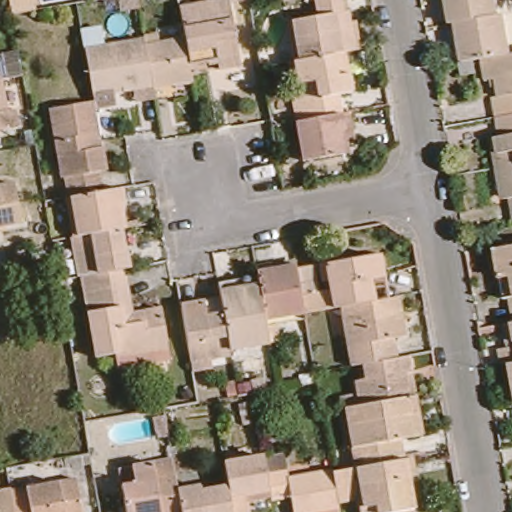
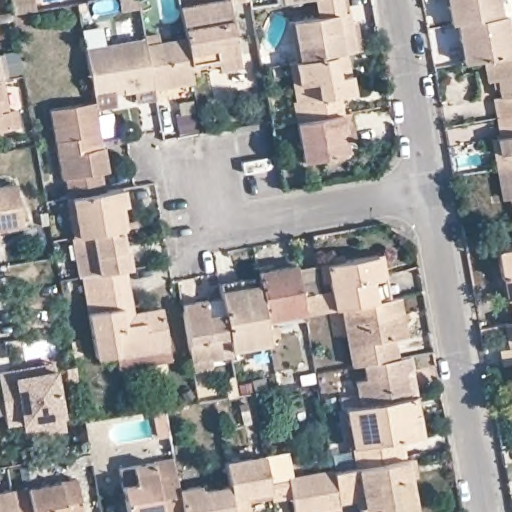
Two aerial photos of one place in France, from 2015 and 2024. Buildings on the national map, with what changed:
new [(11,13),(9,0),(35,0),(36,8),(11,13)]
unchanged [(184,5),(220,0),(233,0),(245,65),(196,73),(190,38),(184,5)]
unchanged [(283,0),(289,0),(284,1),(283,0)]
unchanged [(348,10),(355,49),(344,51),(294,60),(289,21),(319,15),(316,0),(341,0),(343,11),(348,10)]
unchanged [(461,26),(456,27),(451,0),(500,0),(504,19),(461,26)]
unchanged [(488,63),(469,66),(461,26),(504,19),(509,18),(512,35),(512,59),(488,63)]
unchanged [(149,38),(149,36),(166,32),(168,41),(190,38),(196,73),(198,80),(158,86),(158,83),(149,38)]
unchanged [(89,49),(149,38),(158,83),(158,86),(159,94),(141,97),(139,86),(127,89),(119,90),(121,102),(99,106),(98,100),(97,89),(89,49)]
unchanged [(344,51),(351,91),(331,94),(334,114),(296,121),(293,101),(301,100),(294,60),(344,51)]
unchanged [(502,121),(498,102),(504,101),(501,83),(492,84),(488,63),(512,59),(512,120),(502,121)]
unchanged [(10,136),(0,138),(0,88),(1,88),(10,136)]
unchanged [(74,197),(70,176),(66,177),(53,108),(98,100),(99,106),(105,139),(112,169),(103,171),(108,191),(74,197)]
unchanged [(334,114),(341,113),(344,130),(339,131),(343,153),(304,159),(296,121),(334,114)]
unchanged [(512,120),(512,202),(508,203),(497,143),(505,141),(502,121),(512,120)]
unchanged [(25,222),(0,226),(0,187),(18,183),(25,222)]
unchanged [(81,235),(74,197),(108,191),(126,188),(128,203),(126,204),(131,226),(124,227),(81,235)]
unchanged [(87,275),(84,275),(76,236),(81,235),(124,227),(128,250),(131,249),(133,267),(119,269),(87,275)]
unchanged [(502,282),(497,253),(512,251),(512,281),(502,282)]
unchanged [(341,306),(304,312),(301,295),(331,289),(326,263),(381,253),(384,275),(369,278),(374,300),(341,306)]
unchanged [(304,312),(264,319),(258,284),(256,272),(295,265),(301,295),(304,312)]
unchanged [(119,269),(128,315),(165,308),(172,345),(153,348),(155,355),(125,361),(123,351),(100,356),(87,275),(119,269)]
unchanged [(264,319),(269,343),(229,348),(223,313),(219,290),(258,284),(264,319)]
unchanged [(363,363),(352,365),(341,306),(374,300),(399,296),(405,335),(394,337),(398,357),(363,363)]
unchanged [(229,348),(231,355),(211,358),(212,366),(192,370),(180,305),(203,300),(206,315),(223,313),(229,348)]
unchanged [(359,405),(355,380),(365,377),(363,363),(398,357),(409,355),(412,372),(404,373),(409,396),(359,405)]
new [(21,418),(6,420),(0,385),(0,368),(13,366),(54,358),(55,366),(63,409),(66,424),(24,432),(21,418)]
new [(73,362),(75,377),(65,379),(63,364),(73,362)]
unchanged [(511,369),(512,369),(512,378),(511,369)]
unchanged [(356,467),(345,407),(359,405),(409,396),(413,396),(420,435),(400,438),(403,459),(356,467)]
unchanged [(228,485),(223,461),(263,454),(266,473),(269,490),(244,495),(247,512),(233,512),(228,485)]
unchanged [(358,497),(338,501),(332,471),(356,467),(403,459),(412,457),(414,475),(407,476),(413,507),(414,512),(361,512),(358,497)]
unchanged [(119,468),(152,462),(155,478),(174,474),(176,487),(181,512),(127,512),(119,468)]
unchanged [(9,489),(15,488),(13,473),(43,468),(45,483),(78,477),(86,512),(14,512),(9,489)]
unchanged [(266,473),(286,470),(288,477),(332,471),(338,501),(339,506),(308,512),(293,512),(291,496),(271,499),(269,490),(266,473)]
unchanged [(176,487),(199,484),(201,490),(228,485),(233,512),(181,512),(176,487)]
unchanged [(0,491),(9,489),(14,512),(0,512),(0,491)]

